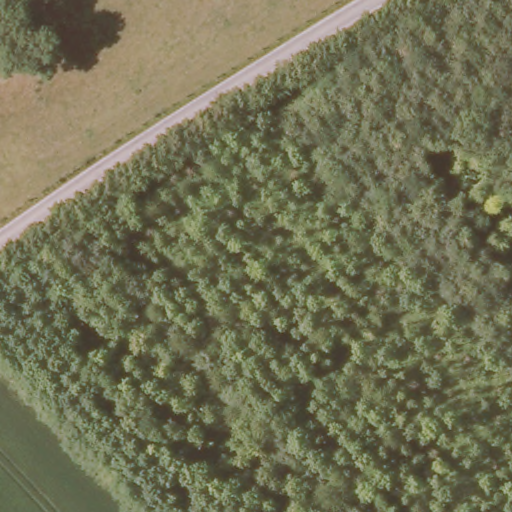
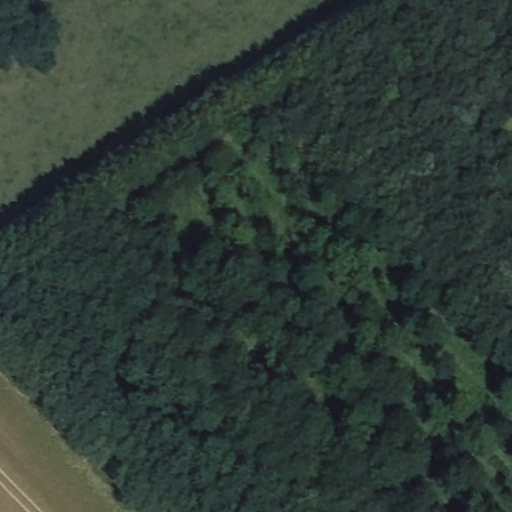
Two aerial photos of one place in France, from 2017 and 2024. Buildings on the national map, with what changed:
[]

